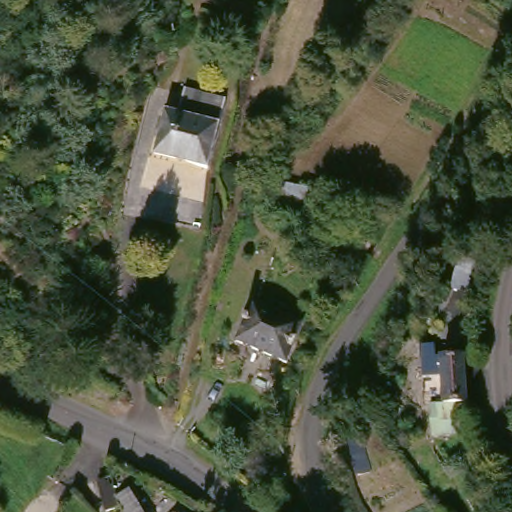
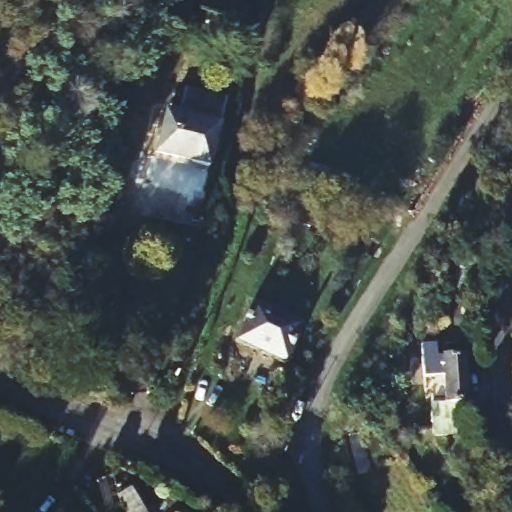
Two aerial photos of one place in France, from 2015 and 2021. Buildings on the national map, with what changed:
unchanged [(191,90),(232,98),(219,159),(178,153),(191,90)]
unchanged [(270,199),(280,202),(278,208),(297,214),(293,227),(263,218),(270,199)]
unchanged [(259,306),(275,312),(307,324),(293,361),(243,342),(259,306)]
unchanged [(474,432),(440,435),(439,407),(449,406),(446,362),(470,360),(474,432)]
unchanged [(111,512),(108,512),(106,501),(101,481),(114,478),(122,476),(126,494),(140,489),(147,502),(142,503),(146,512),(129,512),(128,509),(111,512)]

